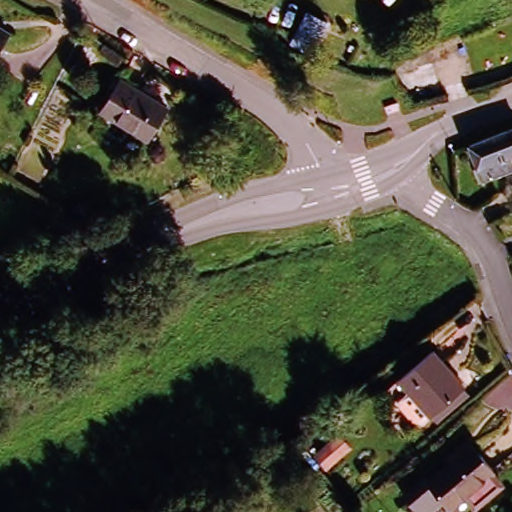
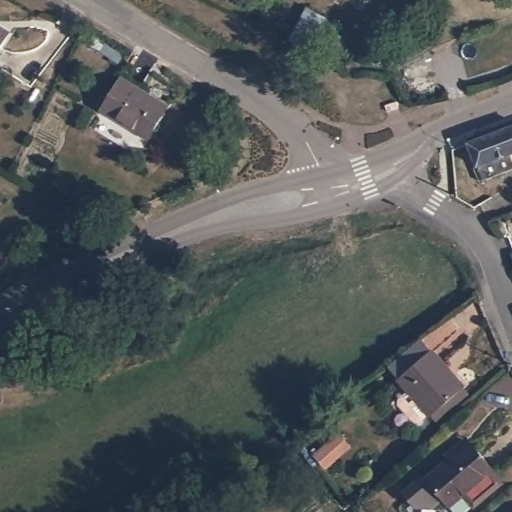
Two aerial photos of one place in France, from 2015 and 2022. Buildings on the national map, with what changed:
unchanged [(302,12),(323,20),(310,51),(290,45),(302,12)]
unchanged [(0,64),(0,26),(16,35),(0,64)]
unchanged [(120,77),(174,106),(148,145),(96,120),(120,77)]
unchanged [(512,159),(512,170),(483,181),(477,168),(467,143),(512,125),(512,154),(510,155),(512,159)]
unchanged [(427,353),(468,393),(438,423),(397,382),(427,353)]
unchanged [(477,444),(501,473),(455,512),(450,512),(428,486),(477,444)]

